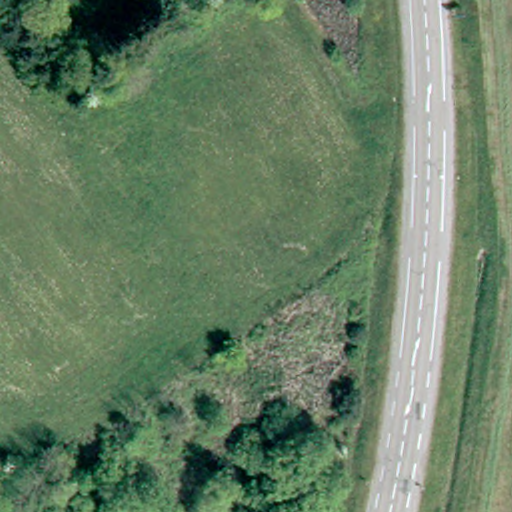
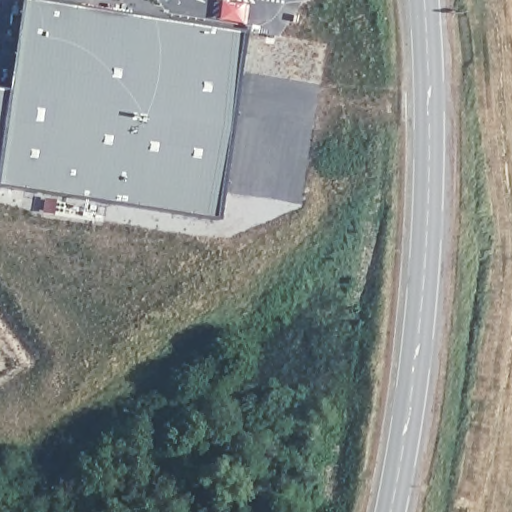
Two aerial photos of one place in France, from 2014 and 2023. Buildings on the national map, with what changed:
new [(20,0),(47,0),(244,30),(216,220),(0,187),(0,89),(6,90),(20,0)]

